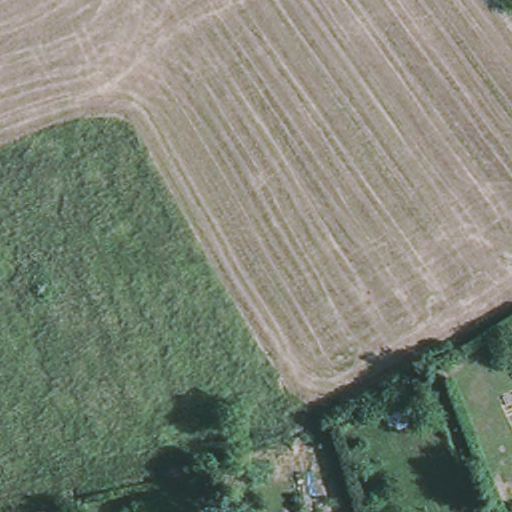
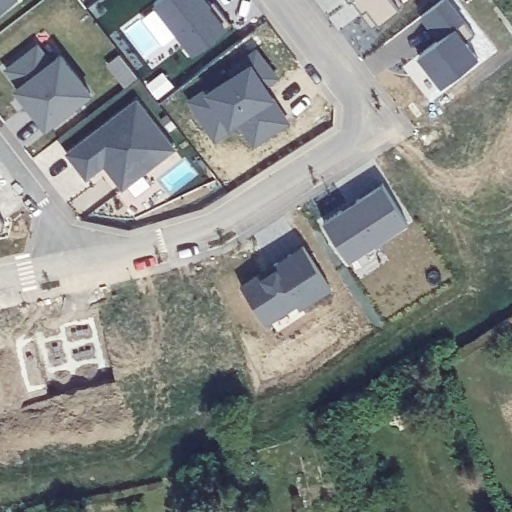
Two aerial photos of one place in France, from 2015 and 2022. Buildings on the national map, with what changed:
new [(0,8),(0,0),(10,0),(0,8)]
new [(148,1),(150,0),(200,0),(203,4),(208,0),(226,24),(188,53),(173,33),(156,45),(136,17),(151,5),(148,1)]
new [(344,3),(341,0),(347,0),(344,3)]
new [(397,5),(366,29),(354,12),(359,9),(352,0),(394,0),(397,5)]
new [(439,35),(433,28),(428,32),(414,16),(430,4),(472,58),(437,86),(412,55),(439,35)]
new [(74,100),(39,127),(20,102),(24,98),(19,101),(9,88),(13,85),(0,68),(31,44),(44,61),(54,54),(81,89),(84,92),(74,100)]
new [(203,92),(226,76),(223,70),(250,50),(271,77),(259,86),(265,96),(282,122),(248,144),(231,119),(224,124),(226,127),(208,139),(183,100),(201,88),(203,92)]
new [(131,100),(168,149),(116,189),(98,165),(80,178),(60,153),(131,100)]
new [(336,210),(336,212),(352,203),(351,200),(376,184),(402,223),(343,261),(318,222),(336,210)]
new [(266,266),(298,246),(324,288),(293,308),(291,304),(259,324),(235,287),(255,274),(266,266)]
new [(43,339),(43,341),(64,337),(63,327),(93,321),(101,360),(48,374),(50,385),(26,391),(17,344),(43,339)]

